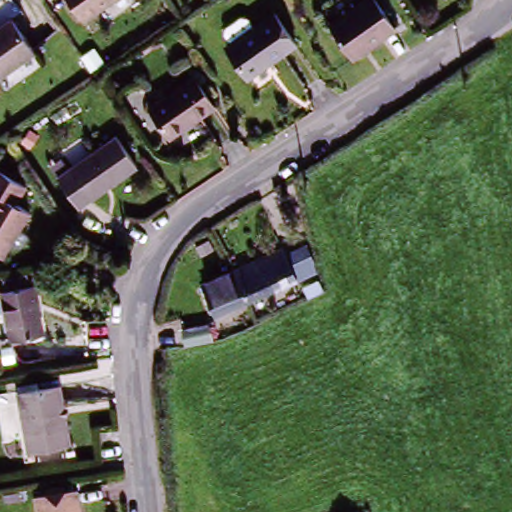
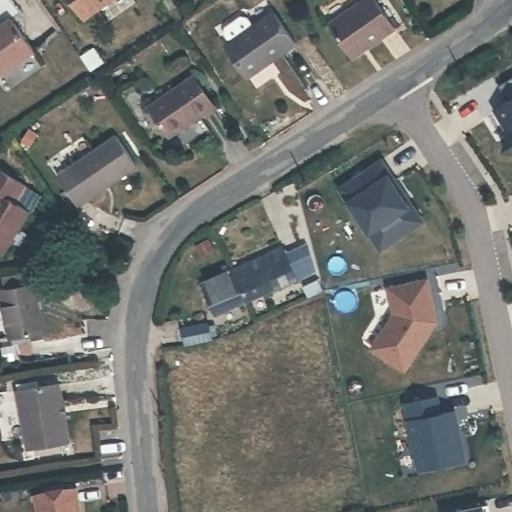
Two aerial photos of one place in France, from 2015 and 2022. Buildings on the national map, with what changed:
unchanged [(108,0),(81,20),(67,0),(108,0)]
unchanged [(373,0),(396,32),(353,61),(329,27),(368,0),(373,0)]
unchanged [(224,48),(271,15),(293,47),(246,80),(224,48)]
unchanged [(31,54),(0,75),(0,25),(7,20),(31,54)]
unchanged [(211,106),(167,137),(145,107),(190,77),(211,106)]
new [(505,149),(509,132),(495,109),(512,98),(512,151),(505,149)]
unchanged [(87,202),(66,172),(113,139),(134,170),(87,202)]
new [(383,160),(403,190),(400,192),(408,205),(411,203),(422,220),(380,249),(340,189),(383,160)]
unchanged [(12,205),(27,213),(0,257),(0,174),(22,187),(12,205)]
unchanged [(226,267),(277,245),(280,252),(294,246),(301,243),(308,270),(305,272),(291,278),(240,298),(226,267)]
unchanged [(240,298),(208,312),(194,281),(226,267),(240,298)]
new [(394,314),(388,287),(427,279),(436,321),(406,371),(372,350),(394,314)]
unchanged [(8,342),(0,301),(0,293),(32,287),(41,336),(8,342)]
unchanged [(202,317),(207,335),(196,337),(183,340),(179,323),(202,317)]
unchanged [(27,451),(18,392),(58,385),(68,445),(27,451)]
new [(437,396),(441,413),(455,410),(458,427),(456,428),(458,438),(460,437),(465,460),(418,469),(405,403),(437,396)]
unchanged [(35,501),(74,495),(77,512),(37,512),(35,501)]
new [(489,512),(451,512),(487,505),(489,512)]

